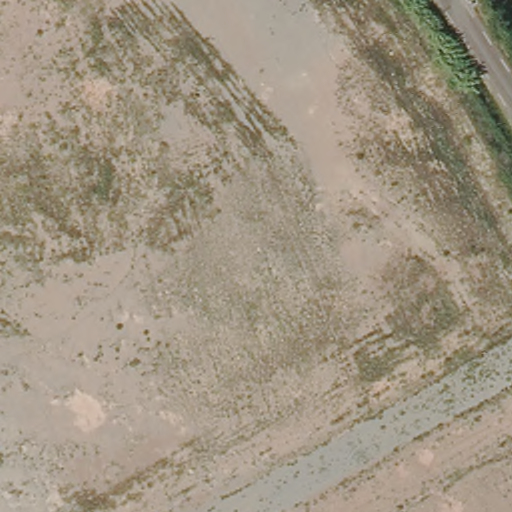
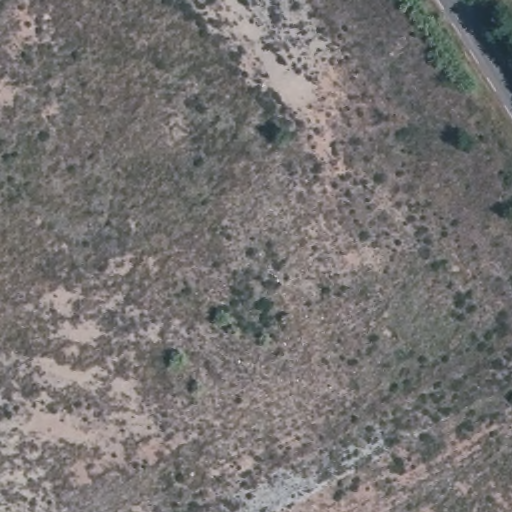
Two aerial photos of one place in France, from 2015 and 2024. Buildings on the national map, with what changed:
[]

